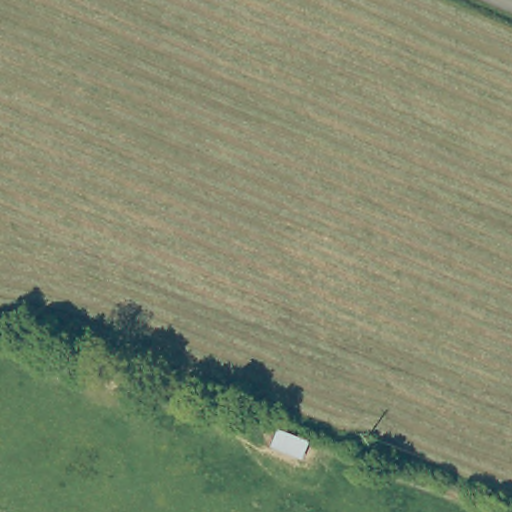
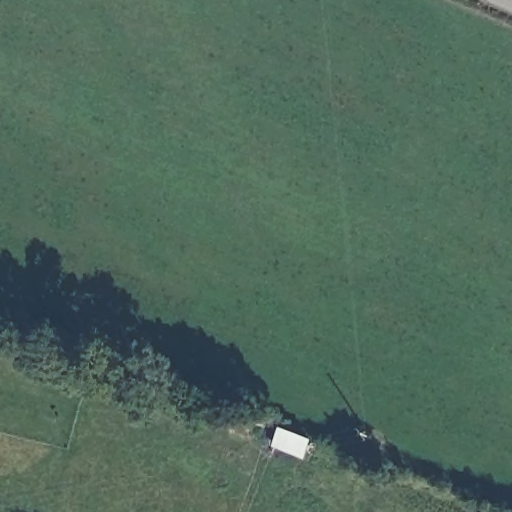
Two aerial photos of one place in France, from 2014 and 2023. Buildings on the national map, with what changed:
unchanged [(304,457),(273,444),(281,429),(310,441),(304,457)]

